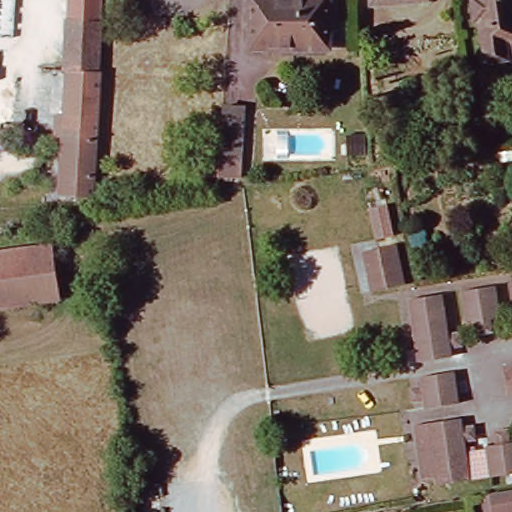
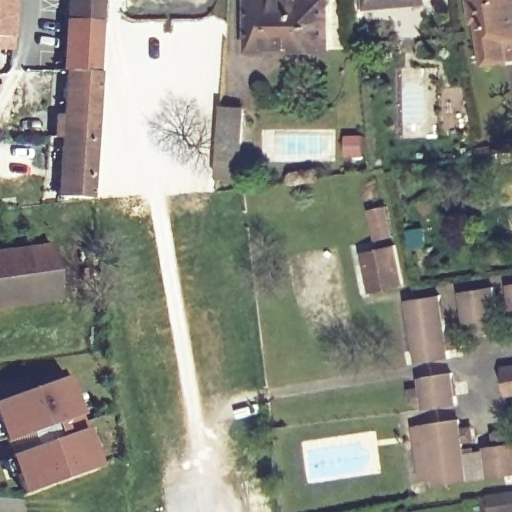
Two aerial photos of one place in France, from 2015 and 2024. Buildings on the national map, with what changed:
unchanged [(16,0),(14,30),(0,29),(0,0),(16,0)]
unchanged [(69,70),(72,0),(102,0),(102,19),(111,19),(108,71),(105,137),(103,192),(62,190),(65,135),(62,135),(62,114),(70,114),(72,70),(69,70)]
unchanged [(329,0),(328,50),(252,49),(253,0),(329,0)]
unchanged [(370,6),(369,0),(428,0),(370,6)]
unchanged [(487,24),(475,25),(473,0),(512,0),(512,65),(492,67),(487,24)]
unchanged [(220,177),(223,106),(248,107),(245,178),(220,177)]
unchanged [(372,209),(389,206),(395,236),(377,240),(372,209)]
unchanged [(0,313),(0,252),(55,244),(62,305),(0,313)]
unchanged [(403,287),(374,292),(368,262),(367,251),(380,249),(396,247),(403,287)]
unchanged [(480,333),(477,319),(467,320),(462,290),(492,285),(497,315),(488,317),(490,331),(480,333)]
unchanged [(443,351),(445,360),(415,365),(405,304),(435,300),(442,340),(453,337),(455,349),(443,351)]
unchanged [(503,366),(512,365),(512,394),(508,395),(503,366)]
new [(67,377),(100,469),(23,497),(10,457),(37,448),(32,434),(3,442),(0,432),(0,383),(24,375),(27,381),(61,369),(67,377)]
unchanged [(428,406),(423,375),(452,370),(457,402),(428,406)]
unchanged [(425,485),(415,423),(456,417),(457,427),(470,425),(472,437),(459,440),(465,480),(425,485)]
unchanged [(492,444),(500,443),(498,430),(510,428),(512,441),(512,472),(497,475),(492,444)]
unchanged [(512,491),(512,512),(491,512),(488,495),(512,491)]

